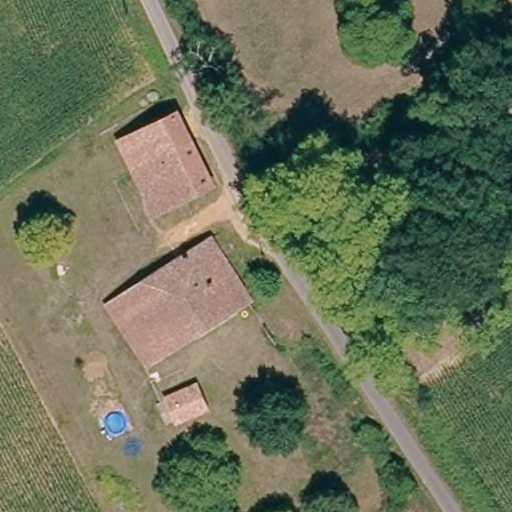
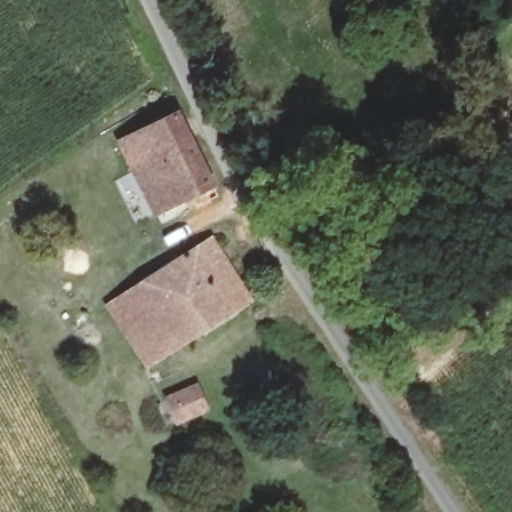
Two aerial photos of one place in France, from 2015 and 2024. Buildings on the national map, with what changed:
unchanged [(186,145),(162,159),(131,175),(116,150),(171,117),(186,145)]
unchanged [(185,203),(162,159),(186,145),(210,188),(185,203)]
unchanged [(156,220),(131,175),(162,159),(185,203),(156,220)]
unchanged [(106,308),(145,282),(211,238),(250,299),(166,357),(148,369),(130,341),(106,308)]
unchanged [(180,415),(167,395),(176,390),(197,376),(209,393),(180,415)]

